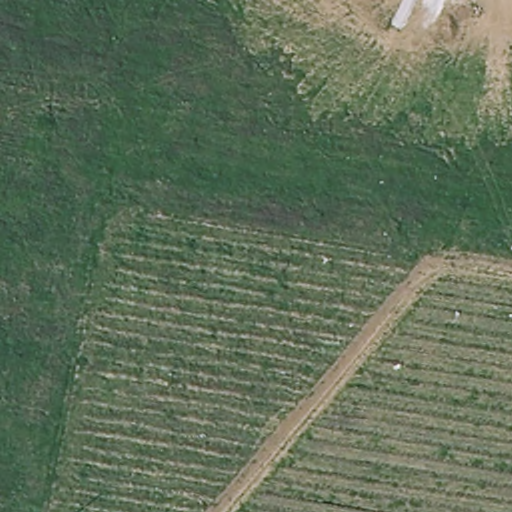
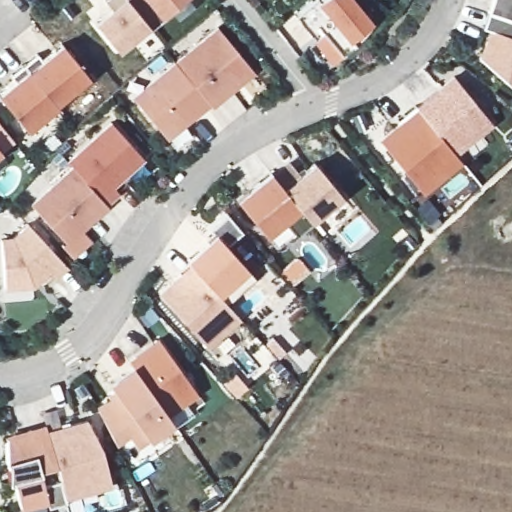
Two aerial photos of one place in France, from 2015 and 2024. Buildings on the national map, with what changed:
new [(122,53),(100,26),(117,13),(108,2),(110,0),(130,0),(152,27),(122,53)]
new [(169,20),(156,31),(130,0),(185,0),(166,16),(169,20)]
new [(320,0),(354,0),(374,24),(354,40),(359,46),(337,64),(318,40),(313,35),(299,18),(320,0)]
new [(512,0),(512,21),(489,13),(493,0),(512,0)]
new [(483,29),(489,13),(512,21),(512,86),(481,60),(491,31),(483,29)]
new [(223,30),(258,73),(216,108),(180,65),(223,30)]
new [(42,57),(47,64),(67,48),(93,79),(60,105),(28,68),(42,57)]
new [(211,102),(167,140),(131,97),(176,59),(180,65),(211,102)]
new [(20,85),(15,79),(28,68),(60,105),(61,108),(31,132),(3,99),(20,85)]
new [(459,78),(496,123),(459,154),(422,108),(459,78)]
new [(402,121),(408,116),(420,106),(422,108),(459,154),(466,161),(427,193),(385,142),(405,125),(402,121)]
new [(117,125),(148,160),(117,188),(123,194),(111,206),(78,170),(73,165),(117,125)]
new [(5,154),(0,158),(0,148),(5,154)]
new [(310,190),(302,180),(321,165),(346,197),(315,222),(297,200),(310,190)]
new [(78,170),(111,206),(113,208),(71,246),(37,208),(78,170)]
new [(276,174),(279,179),(297,200),(315,222),(318,225),(302,238),(289,222),(271,237),(242,203),(276,174)]
new [(217,294),(185,258),(213,232),(210,228),(226,214),(241,232),(226,244),(247,267),(217,294)]
new [(18,242),(33,228),(72,269),(60,280),(54,274),(38,288),(9,290),(6,243),(18,242)]
new [(217,294),(240,319),(207,348),(158,293),(190,264),(217,294)]
new [(163,344),(201,397),(171,419),(133,366),(163,344)]
new [(171,419),(173,423),(147,441),(139,449),(129,437),(117,446),(96,408),(108,400),(106,397),(112,390),(106,382),(132,364),(133,366),(171,419)]
new [(93,424),(107,452),(118,488),(71,501),(53,434),(93,424)]
new [(12,441),(34,435),(52,429),(53,434),(71,501),(73,505),(55,510),(53,503),(26,510),(19,484),(14,485),(14,464),(12,464),(12,444),(12,441)]

